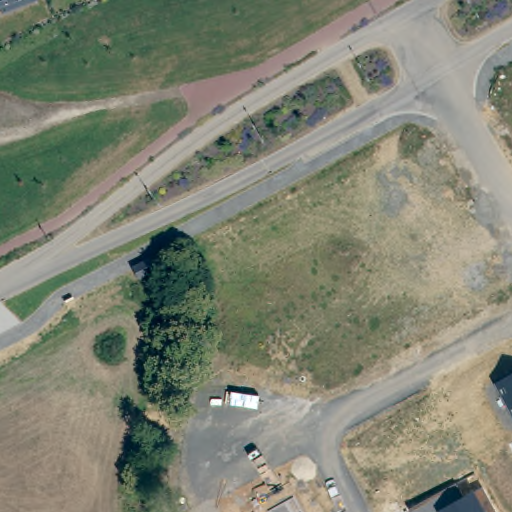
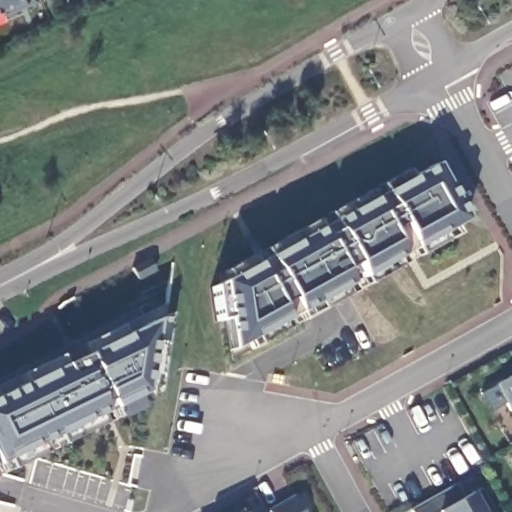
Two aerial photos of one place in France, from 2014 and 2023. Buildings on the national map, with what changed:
unchanged [(0,14),(0,0),(33,0),(0,14)]
new [(215,282),(224,277),(221,273),(249,258),(262,251),(313,222),(327,215),(380,186),(405,172),(411,178),(435,165),(448,190),(450,188),(454,197),(462,212),(458,215),(463,221),(441,232),(442,235),(413,251),(361,280),(353,264),(341,271),(348,285),(341,288),(342,290),(315,305),(313,302),(305,307),(306,309),(298,314),(297,312),(293,315),(283,322),(252,339),(254,342),(244,347),(227,357),(215,282)]
new [(18,376),(56,358),(58,363),(81,352),(82,351),(81,346),(117,328),(121,336),(122,336),(155,321),(161,323),(162,317),(171,313),(162,346),(156,388),(156,402),(151,401),(115,418),(7,471),(0,474),(0,390),(20,381),(18,376)]
unchanged [(497,386),(512,377),(512,415),(497,386)]
unchanged [(465,499),(476,493),(482,489),(495,512),(411,512),(411,511),(457,486),(465,499)]
unchanged [(269,512),(267,510),(292,496),(301,512),(269,512)]

